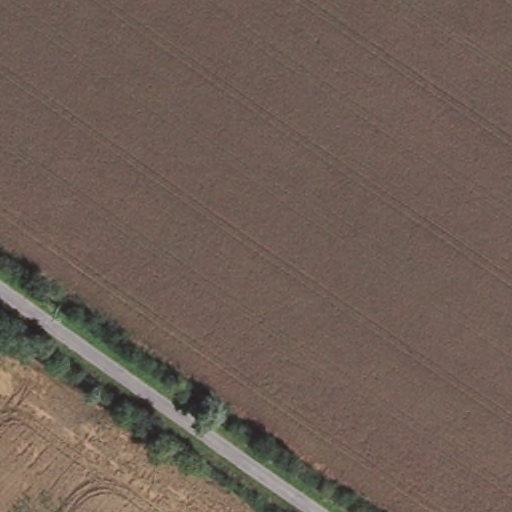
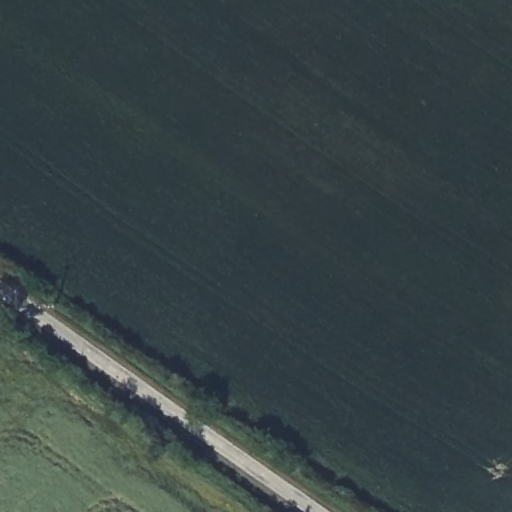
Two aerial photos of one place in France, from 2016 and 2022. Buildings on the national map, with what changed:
[]

